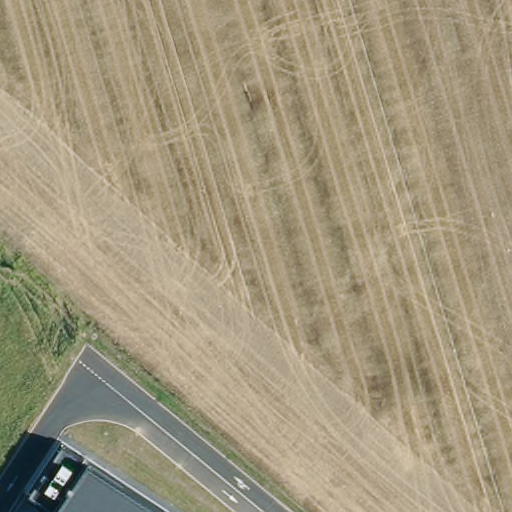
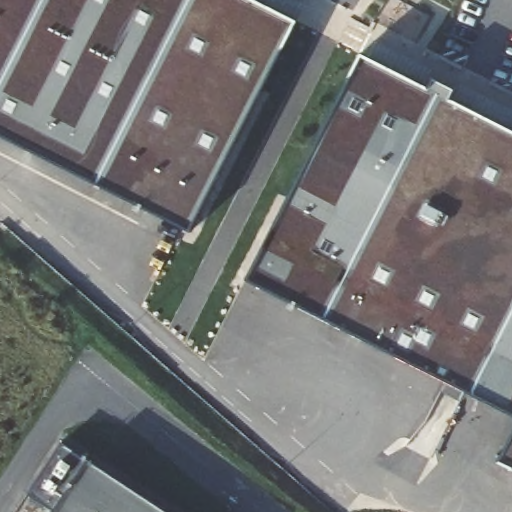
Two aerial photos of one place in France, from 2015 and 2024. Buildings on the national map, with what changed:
new [(294,24),(187,233),(0,136),(0,0),(243,0),(294,24)]
new [(427,95),(433,83),(452,93),(447,102),(512,137),(512,415),(247,282),(360,62),(427,95)]
unchanged [(48,512),(50,508),(29,497),(64,440),(174,512),(48,512)]
new [(498,467),(512,440),(512,474),(498,467)]

